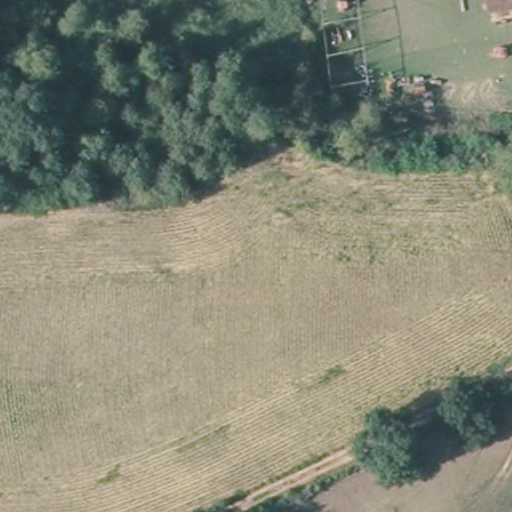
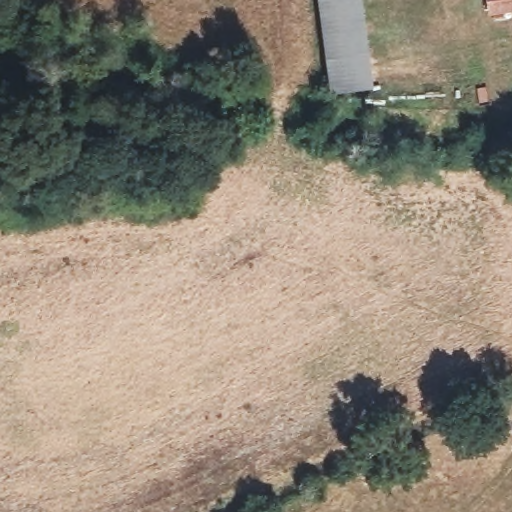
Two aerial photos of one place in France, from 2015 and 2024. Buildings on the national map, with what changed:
new [(370,88),(330,93),(318,0),(361,0),(370,88)]
unchanged [(512,10),(493,14),(489,0),(512,0),(512,10)]

